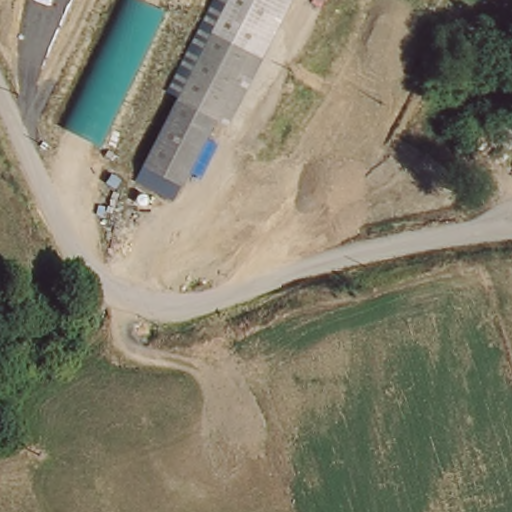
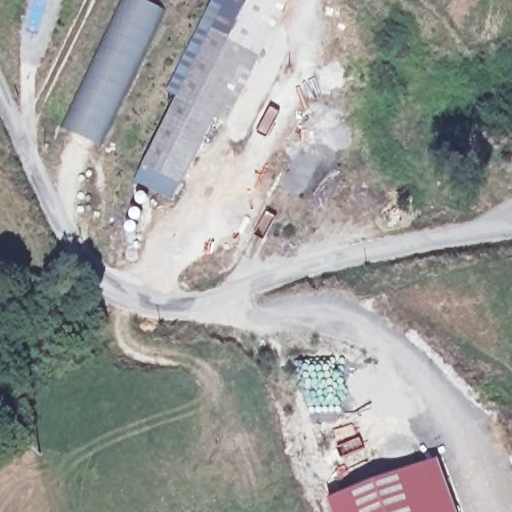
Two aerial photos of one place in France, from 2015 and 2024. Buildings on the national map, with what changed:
unchanged [(66,126),(124,0),(139,0),(167,12),(108,144),(66,126)]
unchanged [(234,0),(296,0),(226,119),(214,112),(177,176),(165,168),(143,156),(234,0)]
new [(328,500),(440,461),(458,512),(333,512),(328,500)]

